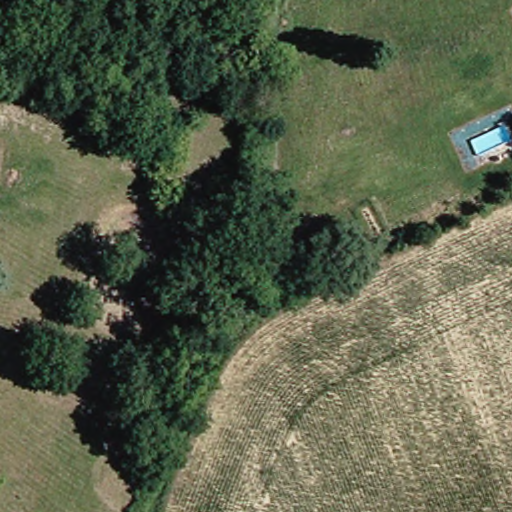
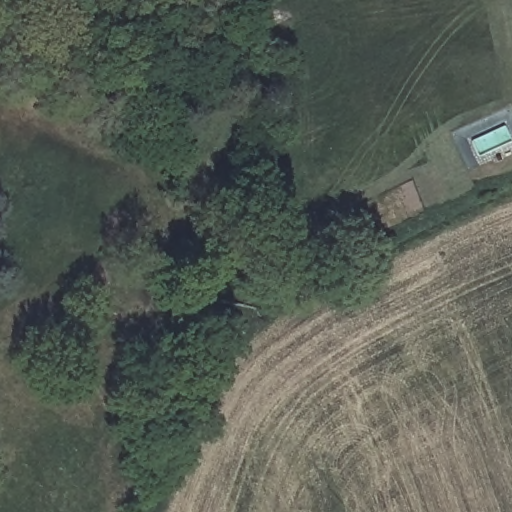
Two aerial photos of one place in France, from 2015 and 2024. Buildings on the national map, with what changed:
[]

